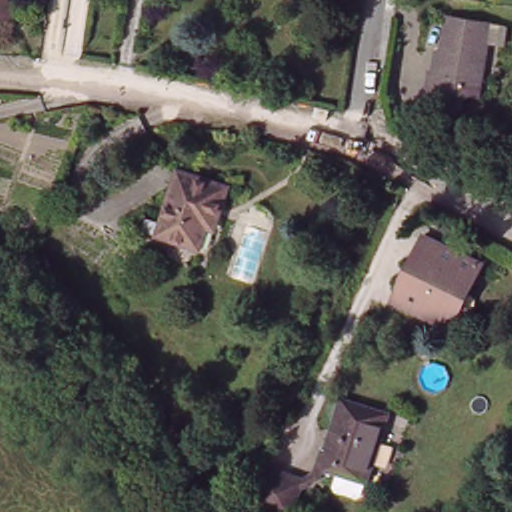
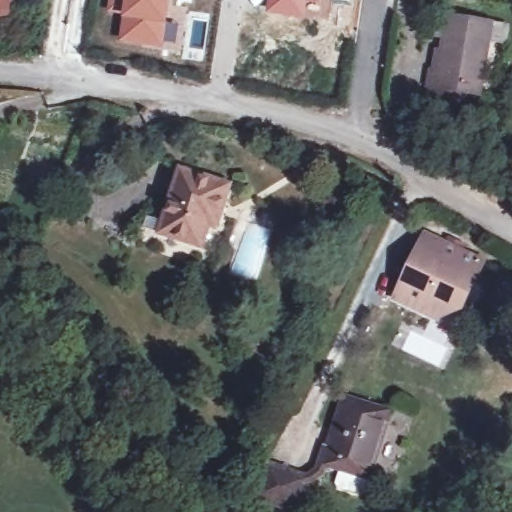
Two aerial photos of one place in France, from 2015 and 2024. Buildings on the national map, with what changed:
unchanged [(11,10),(0,13),(0,0),(8,0),(11,10)]
new [(168,25),(165,24),(164,49),(120,41),(125,14),(107,11),(109,0),(171,0),(168,25)]
new [(268,0),(320,0),(320,4),(308,3),(306,19),(266,14),(268,0)]
unchanged [(496,24),(485,95),(469,93),(466,117),(435,111),(437,88),(435,87),(437,73),(440,74),(443,49),(449,51),(454,18),(496,24)]
unchanged [(144,218),(160,223),(177,171),(225,188),(219,207),(213,227),(205,224),(197,247),(156,234),(141,228),(144,218)]
unchanged [(393,301),(423,238),(482,266),(472,285),(465,283),(450,316),(433,320),(393,301)]
unchanged [(381,485),(333,470),(354,401),(403,417),(381,485)]
unchanged [(288,512),(269,505),(281,473),(316,487),(306,512),(288,512)]

